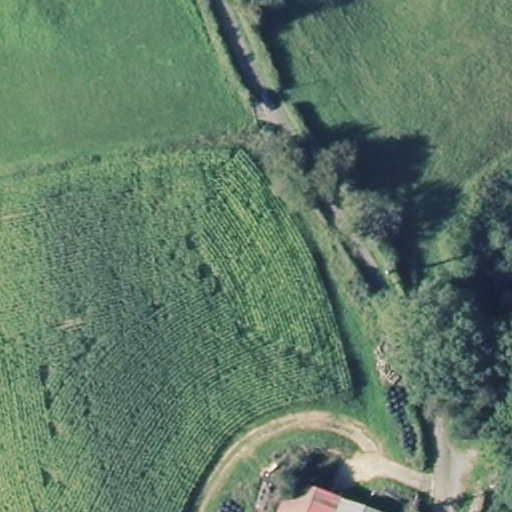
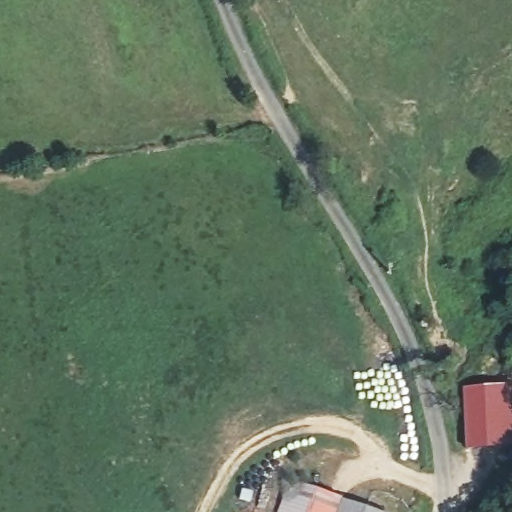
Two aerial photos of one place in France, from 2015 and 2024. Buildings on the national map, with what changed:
new [(512,386),(512,449),(465,450),(462,388),(512,386)]
demolished [(506,431),(469,431),(467,388),(507,386),(506,431)]
unchanged [(288,488),(338,504),(336,512),(279,512),(288,488)]
unchanged [(338,504),(372,512),(336,512),(338,504)]

